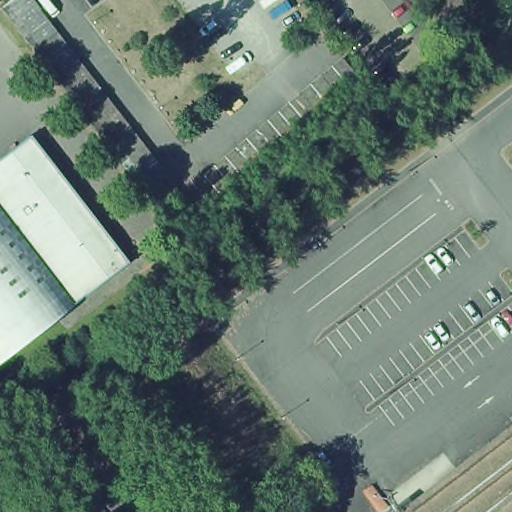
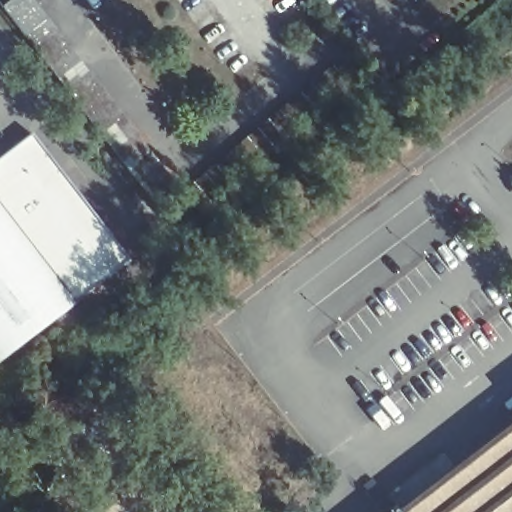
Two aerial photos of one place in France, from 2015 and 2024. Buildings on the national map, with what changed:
unchanged [(34,0),(180,191),(158,209),(7,11),(22,0),(34,0)]
unchanged [(230,161),(241,152),(252,143),(262,134),(273,125),(283,116),(295,107),(305,97),(315,89),(327,80),(337,70),(347,61),(365,82),(355,91),(344,100),(333,110),(322,119),(312,128),(301,136),(290,146),(280,155),(269,164),(258,173),(248,182),(237,191),(227,200),(215,209),(205,218),(187,197),(198,188),(209,179),(220,170),(230,161)]
unchanged [(125,266),(81,300),(77,295),(70,300),(0,210),(0,161),(27,140),(125,266)]
unchanged [(0,363),(0,210),(70,300),(75,306),(0,363)]
unchanged [(512,424),(512,512),(398,512),(512,424)]

